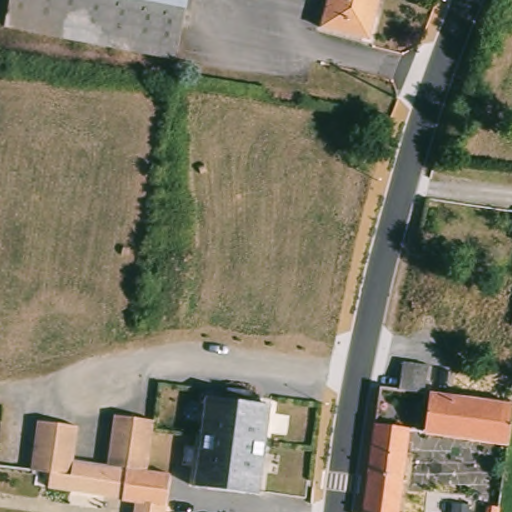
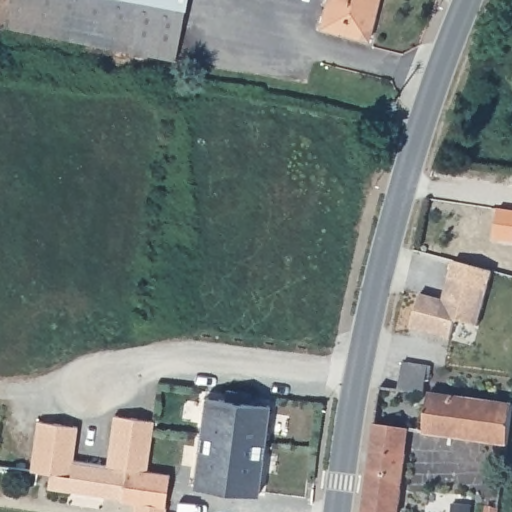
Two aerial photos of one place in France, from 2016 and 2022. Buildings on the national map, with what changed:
unchanged [(8,0),(187,0),(175,59),(3,27),(8,0)]
unchanged [(320,29),(328,0),(379,0),(374,19),(369,40),(363,39),(320,29)]
new [(442,299),(444,292),(448,278),(487,288),(477,326),(454,320),(449,339),(410,328),(419,294),(442,299)]
unchanged [(426,385),(425,397),(399,393),(403,368),(431,372),(429,386),(426,385)]
unchanged [(374,418),(377,389),(399,393),(396,411),(410,414),(409,423),(398,512),(362,512),(374,418)]
unchanged [(512,409),(512,416),(511,424),(507,449),(424,438),(430,398),(512,409)]
unchanged [(269,410),(258,499),(195,492),(205,402),(269,410)]
unchanged [(111,471),(107,494),(123,497),(122,500),(46,490),(48,474),(29,472),(35,422),(77,428),(73,462),(106,465),(112,416),(153,421),(147,476),(111,471)]
unchanged [(147,476),(169,479),(165,512),(135,512),(135,507),(122,505),(122,500),(123,497),(107,494),(111,471),(147,476)]
unchanged [(499,512),(487,512),(487,511),(499,512)]

